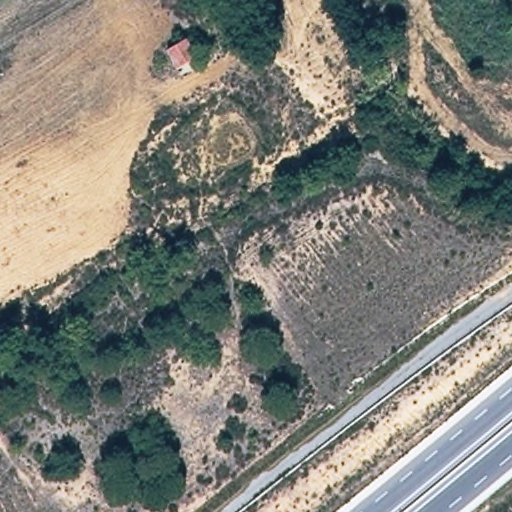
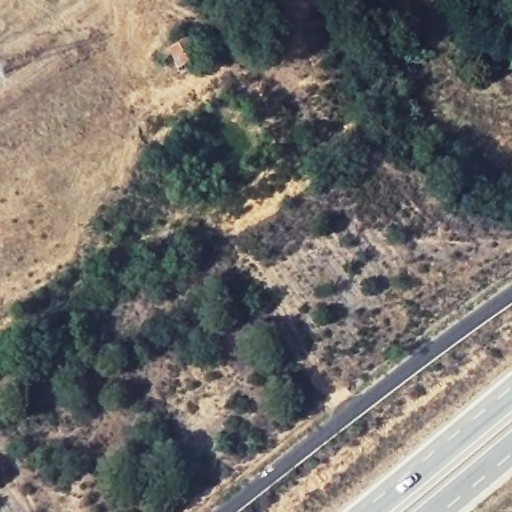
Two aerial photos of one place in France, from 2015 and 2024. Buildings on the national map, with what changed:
unchanged [(173,68),(161,47),(184,35),(196,56),(173,68)]

